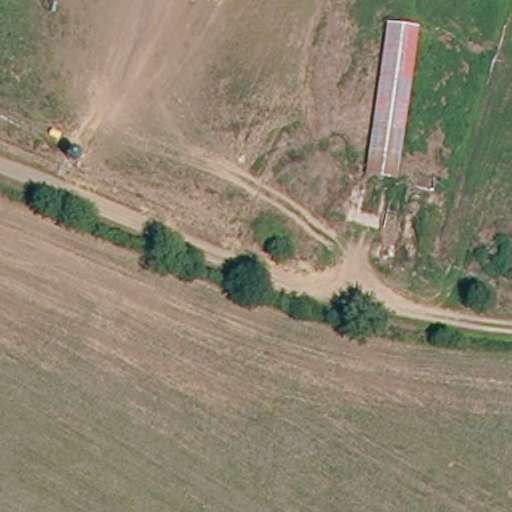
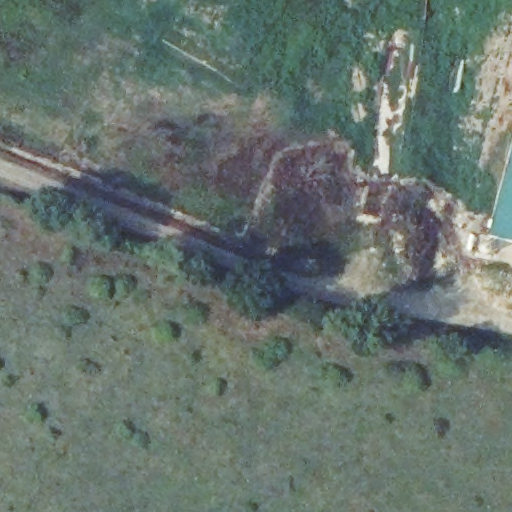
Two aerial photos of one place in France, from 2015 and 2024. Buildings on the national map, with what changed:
demolished [(370,181),(392,25),(425,31),(408,185),(370,181)]
new [(488,236),(512,149),(512,242),(488,236)]

